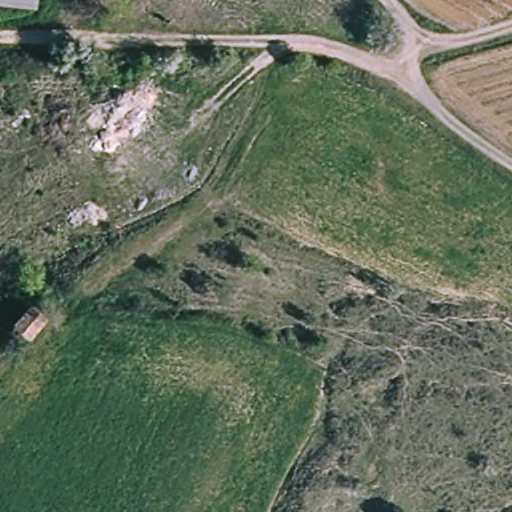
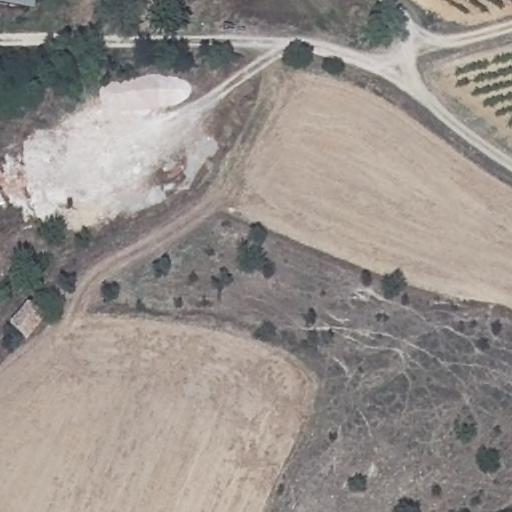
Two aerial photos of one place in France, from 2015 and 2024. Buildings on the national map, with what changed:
unchanged [(0,2),(0,0),(22,0),(21,5),(0,2)]
unchanged [(10,326),(30,304),(45,317),(49,317),(25,341),(10,326)]

